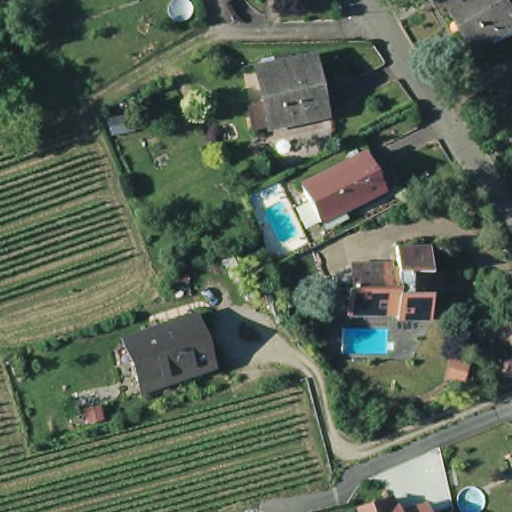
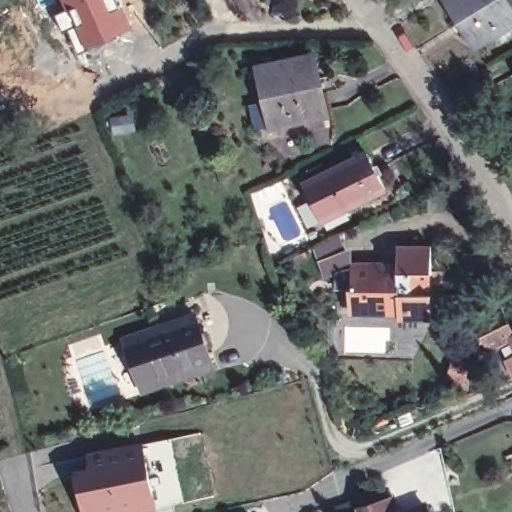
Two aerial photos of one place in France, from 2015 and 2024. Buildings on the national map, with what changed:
new [(134,28),(82,50),(69,30),(63,32),(55,14),(65,9),(61,0),(122,0),(123,3),(134,28)]
unchanged [(499,0),(504,0),(512,12),(512,20),(470,46),(441,0),(499,0)]
unchanged [(257,105),(272,100),(265,69),(317,57),(330,116),(277,127),(262,130),(257,105)]
new [(133,110),(137,130),(111,135),(107,115),(133,110)]
unchanged [(322,227),(303,190),(367,159),(385,195),(322,227)]
unchanged [(418,319),(397,320),(397,313),(352,314),(352,288),(352,270),(385,270),(397,270),(397,248),(432,247),(432,273),(430,274),(430,295),(431,295),(432,297),(432,318),(418,319)]
unchanged [(509,345),(487,356),(472,327),(500,313),(512,337),(512,342),(508,343),(509,345)]
unchanged [(198,314),(217,372),(142,398),(122,337),(198,314)]
unchanged [(508,343),(512,342),(512,351),(509,345),(508,343)]
unchanged [(512,362),(512,379),(505,366),(512,362)]
new [(148,512),(81,512),(72,472),(85,470),(83,456),(139,446),(152,511),(148,512)]
unchanged [(395,498),(399,512),(357,512),(357,508),(395,498)]
unchanged [(427,505),(429,512),(407,512),(427,505)]

